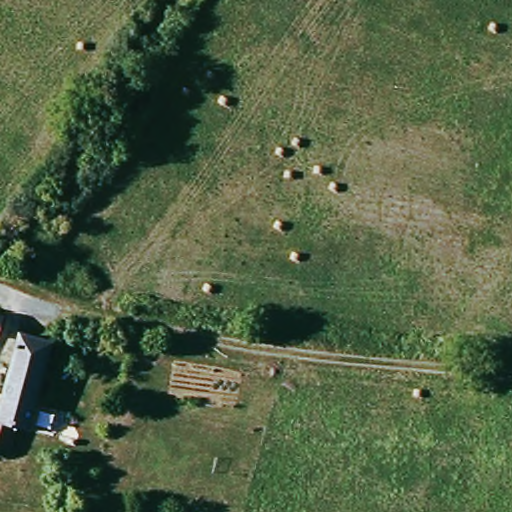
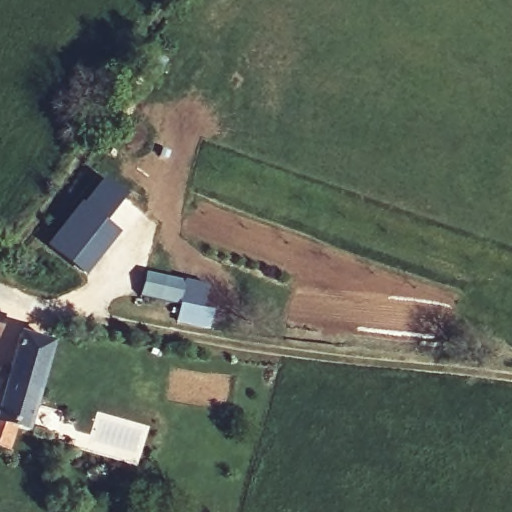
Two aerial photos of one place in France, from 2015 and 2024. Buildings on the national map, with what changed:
new [(72,211),(105,176),(126,194),(105,221),(118,232),(86,275),(46,244),(72,211)]
new [(145,270),(184,277),(178,305),(139,295),(145,270)]
new [(178,305),(184,277),(214,283),(209,307),(214,307),(210,329),(175,323),(178,305)]
unchanged [(1,318),(0,321),(0,318),(1,318)]
unchanged [(23,334),(51,342),(22,435),(5,430),(0,451),(0,404),(23,334)]

